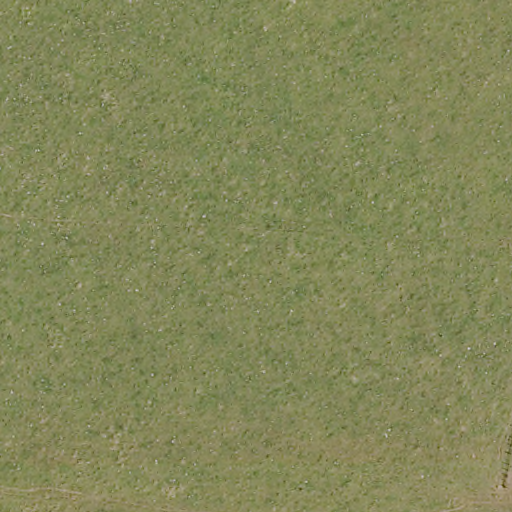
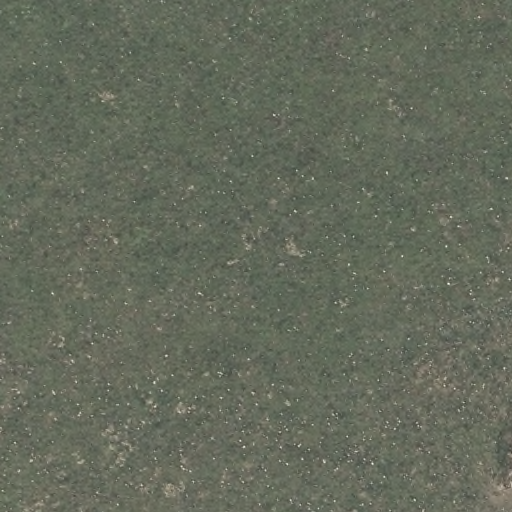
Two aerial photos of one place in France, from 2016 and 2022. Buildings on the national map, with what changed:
[]

